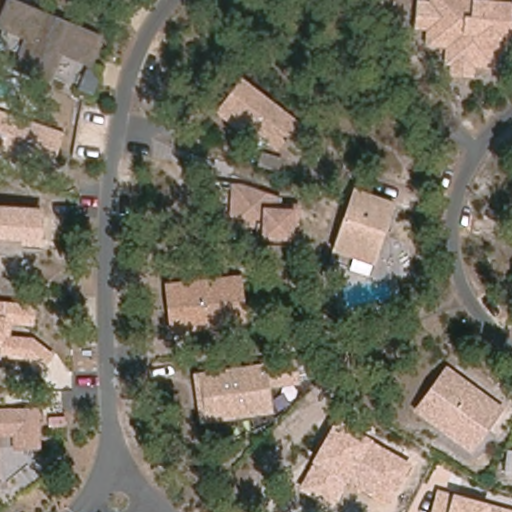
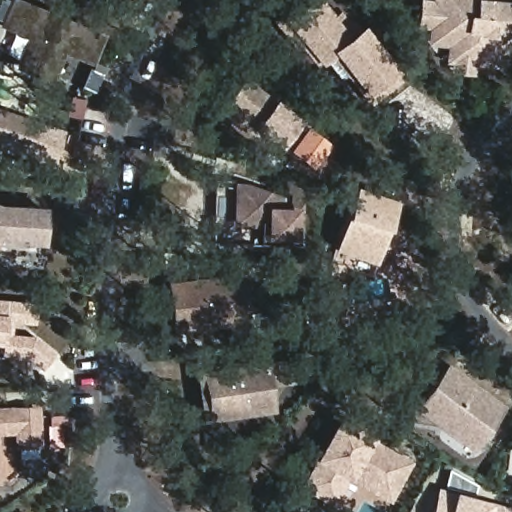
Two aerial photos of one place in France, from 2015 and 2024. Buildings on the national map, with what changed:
unchanged [(14,68),(23,39),(0,30),(0,17),(7,0),(13,0),(105,38),(92,73),(99,80),(94,94),(79,89),(86,67),(63,55),(53,84),(14,68)]
new [(309,0),(321,0),(350,32),(361,24),(397,69),(402,78),(373,105),(366,97),(332,56),(320,66),(304,48),(300,50),(277,24),(309,0)]
unchanged [(474,77),(449,76),(449,65),(444,64),(444,48),(425,47),(425,30),(414,30),(417,1),(429,1),(429,0),(512,0),(512,23),(511,37),(506,37),(503,69),(474,67),(474,77)]
unchanged [(297,120),(275,149),(252,131),(246,138),(214,113),(238,72),(297,120)]
unchanged [(0,151),(0,111),(64,131),(54,169),(0,151)]
new [(313,169),(289,151),(307,126),(332,145),(313,169)]
unchanged [(373,266),(330,251),(351,185),(392,200),(373,266)]
unchanged [(248,186),(277,196),(276,205),(294,205),(293,239),(259,237),(260,220),(234,219),(234,186),(248,186)]
unchanged [(17,246),(18,241),(0,240),(0,203),(41,207),(38,247),(17,246)]
unchanged [(163,287),(219,280),(234,279),(238,324),(224,325),(166,331),(163,287)]
unchanged [(29,320),(10,319),(9,335),(28,337),(49,352),(38,366),(20,352),(0,351),(0,301),(30,304),(29,320)]
demolished [(344,342),(351,358),(340,363),(333,347),(344,342)]
unchanged [(293,355),(297,383),(267,386),(269,412),(197,423),(188,373),(293,355)]
unchanged [(439,427),(415,411),(444,370),(462,382),(467,385),(499,408),(478,437),(469,449),(439,427)]
unchanged [(26,407),(27,442),(8,444),(6,408),(26,407)]
unchanged [(389,504),(347,482),(330,509),(298,490),(311,462),(334,419),(372,440),(411,463),(389,504)]
unchanged [(426,512),(432,488),(512,509),(512,512),(426,512)]

